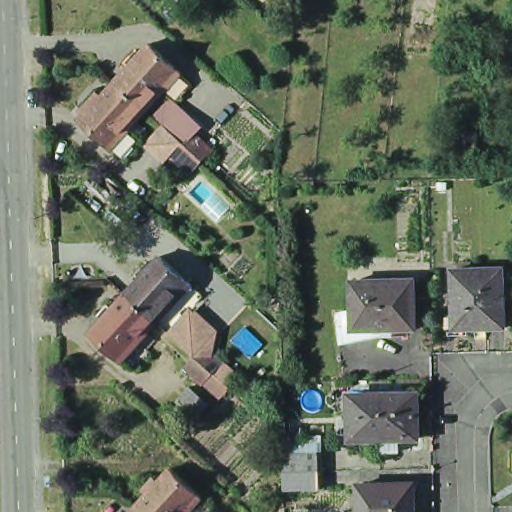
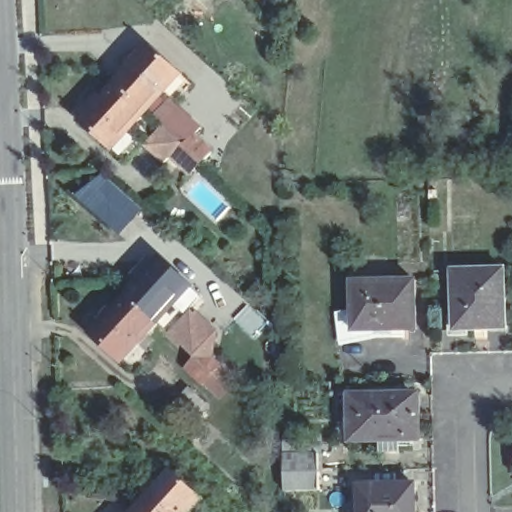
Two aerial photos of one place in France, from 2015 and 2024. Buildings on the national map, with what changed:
unchanged [(177,98),(167,89),(149,109),(117,80),(152,41),(184,70),(183,70),(194,80),(177,98)]
unchanged [(127,156),(116,146),(115,147),(83,119),(117,80),(149,109),(131,129),(142,139),(127,156)]
unchanged [(204,157),(195,167),(177,151),(175,150),(165,160),(148,144),(167,125),(176,133),(191,117),(202,126),(197,131),(213,146),(204,157)]
unchanged [(460,130),(479,131),(477,151),(458,149),(460,130)]
new [(142,209),(118,236),(71,198),(102,174),(142,209)]
unchanged [(142,272),(150,264),(154,269),(170,252),(201,282),(166,320),(134,291),(147,276),(142,272)]
unchanged [(507,326),(457,327),(456,270),(505,268),(507,326)]
unchanged [(417,284),(419,333),(357,334),(355,286),(417,284)]
unchanged [(141,366),(130,356),(130,357),(99,328),(134,291),(166,320),(147,339),(157,350),(141,366)]
unchanged [(199,357),(172,335),(194,311),(219,334),(213,353),(224,363),(240,379),(225,400),(205,383),(189,369),(199,357)]
unchanged [(181,395),(192,383),(211,402),(200,413),(181,395)]
unchanged [(386,448),(385,436),(355,436),(354,394),(421,392),(422,435),(402,436),(402,448),(386,448)]
unchanged [(319,490),(283,490),(282,473),(282,455),(319,455),(319,473),(319,490)]
unchanged [(214,512),(140,512),(137,510),(174,470),(206,498),(205,500),(216,510),(214,512)]
unchanged [(362,488),(417,487),(418,512),(363,512),(362,488)]
unchanged [(137,510),(140,512),(135,512),(137,510)]

